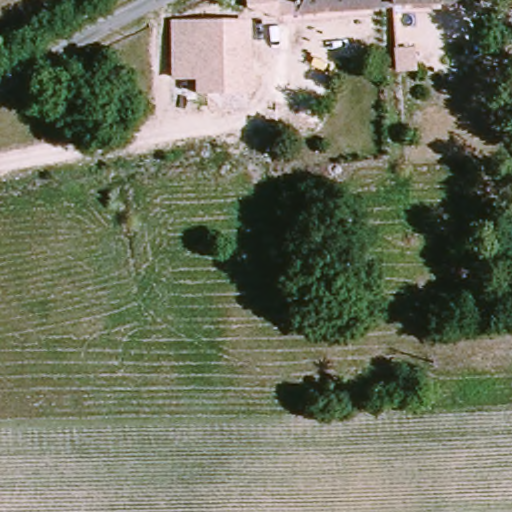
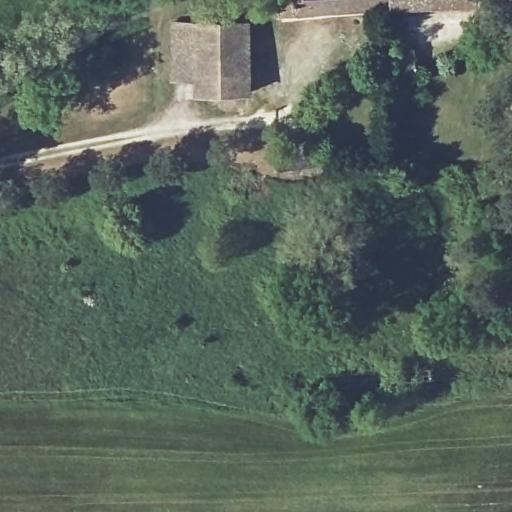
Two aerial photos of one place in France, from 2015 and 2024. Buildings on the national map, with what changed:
unchanged [(283,18),(255,8),(256,0),(471,0),(471,5),(283,18)]
unchanged [(186,95),(164,96),(164,25),(185,24),(186,95)]
unchanged [(198,115),(197,95),(186,95),(185,24),(247,24),(247,94),(247,114),(198,115)]

